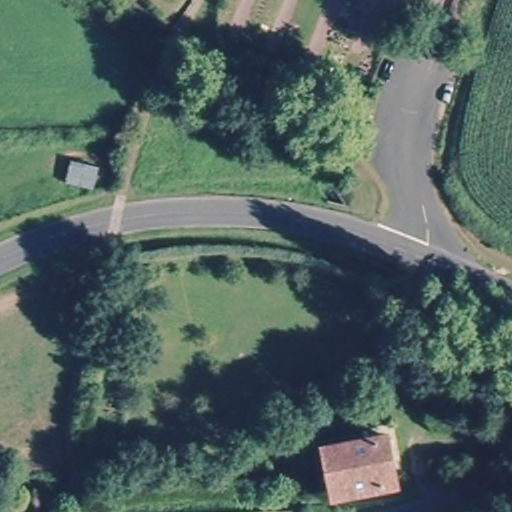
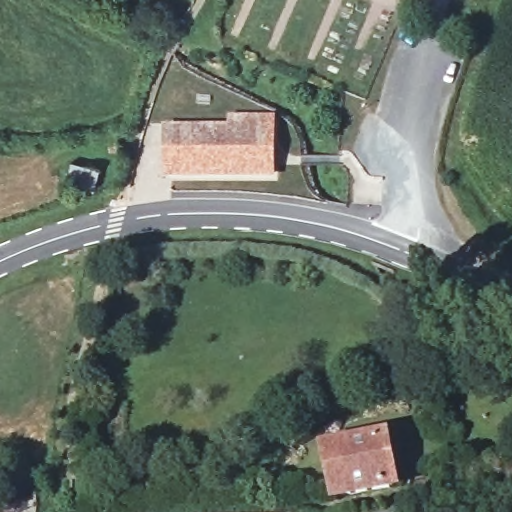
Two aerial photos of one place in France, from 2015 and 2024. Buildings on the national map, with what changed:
new [(163,125),(227,124),(227,115),(277,116),(276,178),(163,177),(163,125)]
unchanged [(98,169),(92,194),(63,187),(67,162),(98,169)]
unchanged [(329,449),(389,441),(396,487),(334,496),(329,449)]

